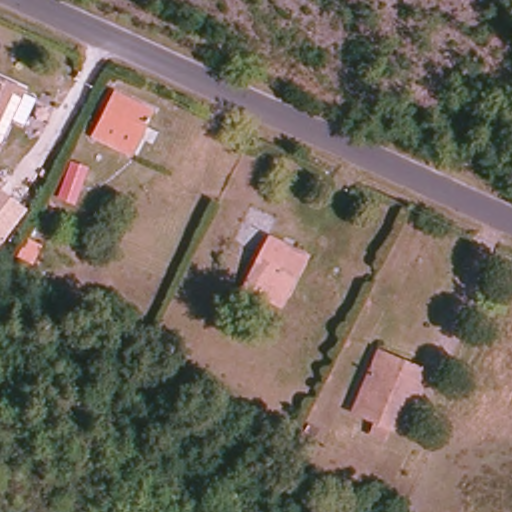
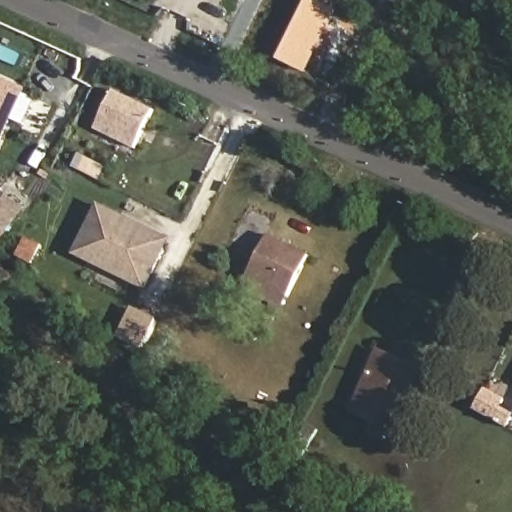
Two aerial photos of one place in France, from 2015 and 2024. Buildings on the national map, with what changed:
new [(310,0),(314,0),(336,11),(321,42),(306,73),(280,60),(295,29),(310,0)]
unchanged [(15,93),(32,102),(22,125),(11,120),(0,143),(0,80),(19,88),(15,93)]
unchanged [(93,135),(99,123),(119,87),(158,107),(140,144),(134,157),(93,135)]
unchanged [(0,242),(0,200),(20,214),(0,242)]
new [(99,206),(120,217),(167,242),(163,251),(142,289),(124,279),(74,253),(79,245),(99,206)]
unchanged [(242,290),(247,279),(268,236),(310,255),(290,300),(286,309),(242,290)]
new [(129,317),(147,330),(133,357),(111,341),(129,317)]
unchanged [(407,430),(393,424),(387,437),(373,431),(377,417),(358,408),(382,349),(418,364),(431,369),(407,430)]

